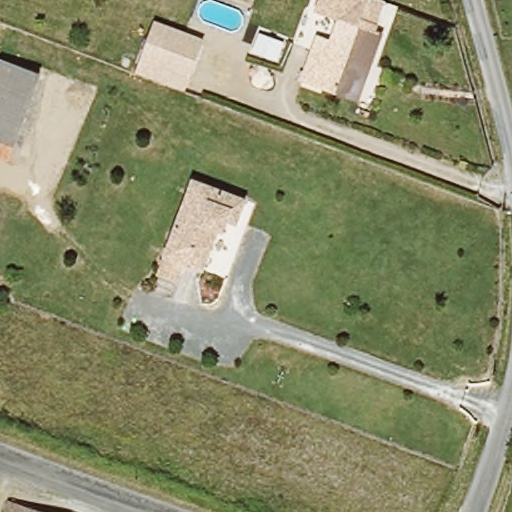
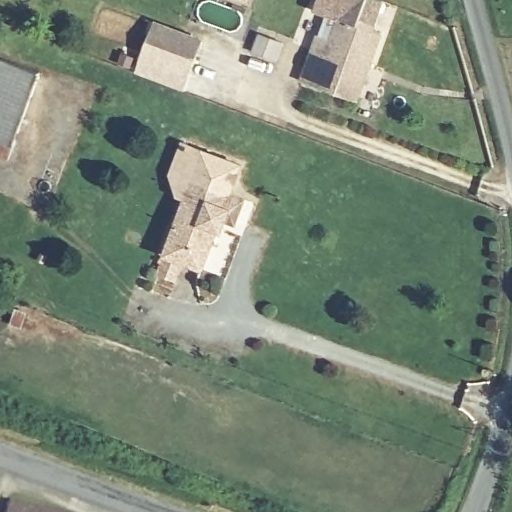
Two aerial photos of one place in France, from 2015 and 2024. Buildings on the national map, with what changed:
unchanged [(246,2),(240,0),(247,0),(246,2)]
unchanged [(315,83),(299,77),(311,47),(325,52),(339,14),(319,5),(321,0),(388,0),(377,29),(383,32),(370,61),(355,99),(315,83)]
unchanged [(203,38),(185,89),(135,71),(153,20),(203,38)]
unchanged [(12,142),(6,157),(0,154),(0,54),(39,69),(12,142)]
new [(244,162),(232,193),(192,179),(181,205),(168,174),(181,138),(244,162)]
unchanged [(213,230),(197,268),(161,252),(192,179),(242,197),(234,221),(225,217),(218,232),(213,230)]
unchanged [(44,512),(6,512),(10,501),(44,512)]

